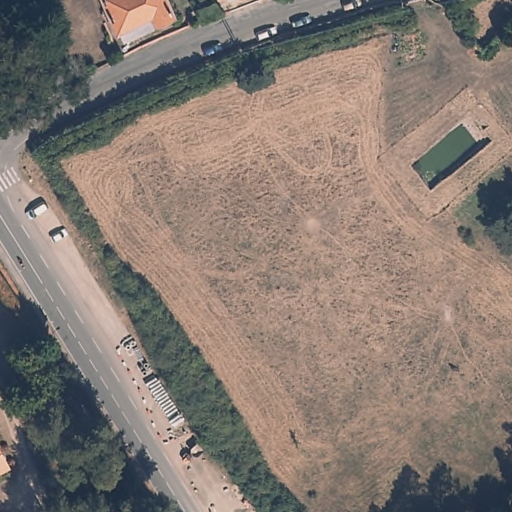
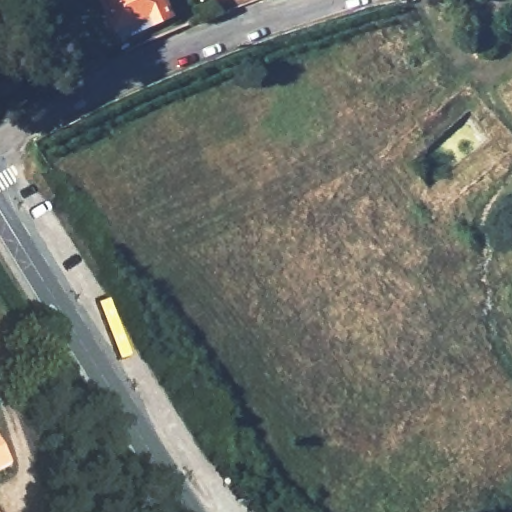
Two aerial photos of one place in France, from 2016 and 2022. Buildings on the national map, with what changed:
unchanged [(175,21),(155,30),(152,23),(118,35),(104,0),(167,0),(175,21)]
unchanged [(14,468),(0,475),(0,440),(14,468)]

